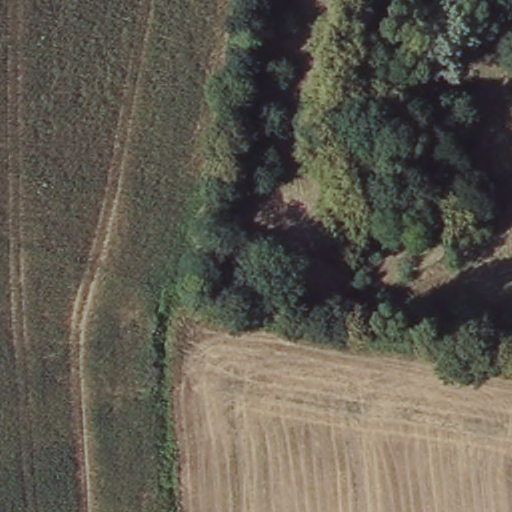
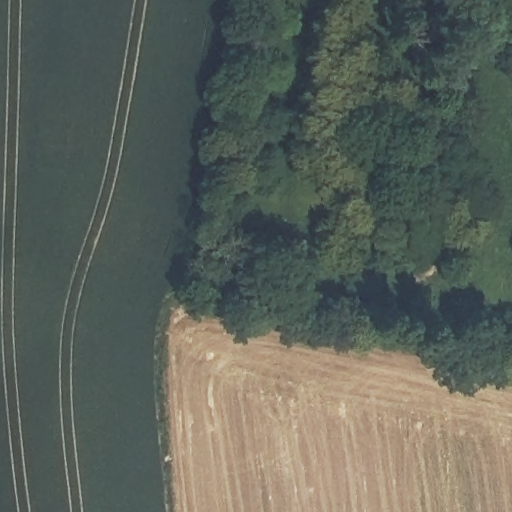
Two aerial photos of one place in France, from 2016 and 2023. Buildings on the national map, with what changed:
[]

